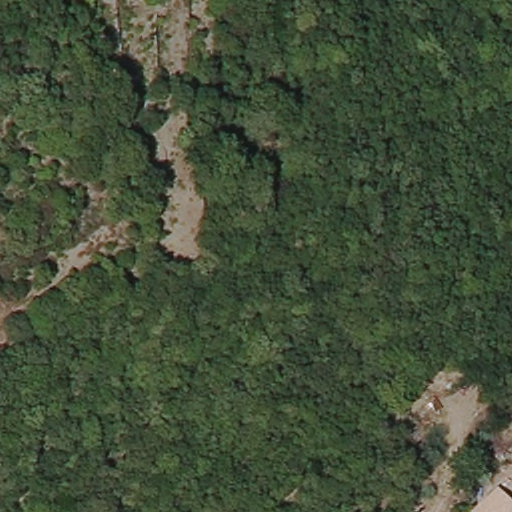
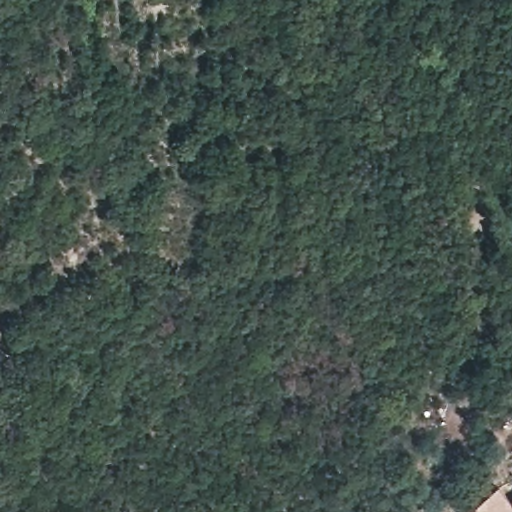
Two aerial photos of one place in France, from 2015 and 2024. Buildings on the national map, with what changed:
unchanged [(484,435),(492,431),(485,421),(504,410),(510,421),(512,420),(512,463),(509,458),(500,462),(484,435)]
unchanged [(507,495),(512,491),(512,512),(470,512),(497,487),(507,495)]

